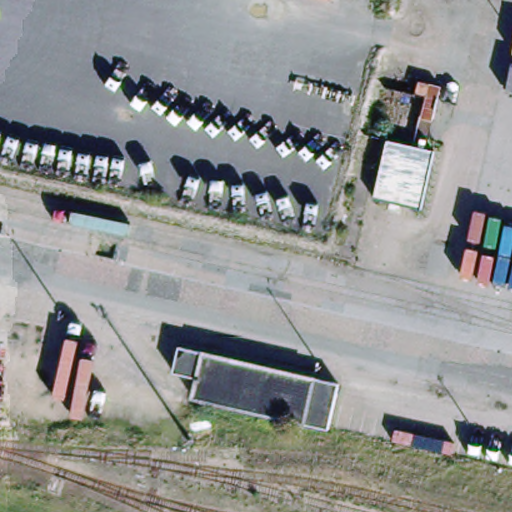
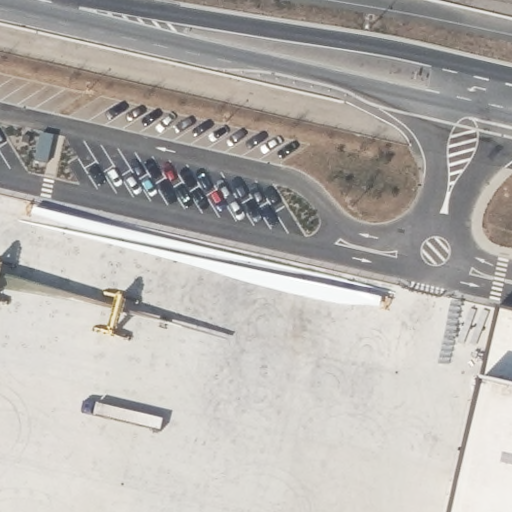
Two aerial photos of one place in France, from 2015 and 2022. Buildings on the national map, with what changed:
demolished [(438,149),(425,208),(376,196),(390,138),(438,149)]
demolished [(180,375),(185,351),(208,356),(322,382),(312,426),(197,400),(202,380),(180,375)]
demolished [(346,387),(336,431),(312,426),(322,382),(346,387)]
new [(436,512),(463,395),(512,405),(512,512),(436,512)]

